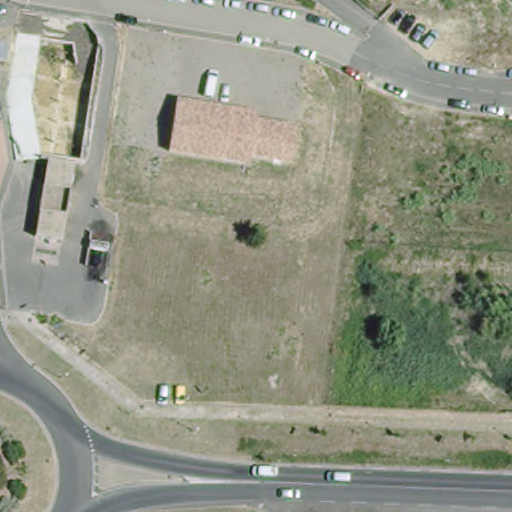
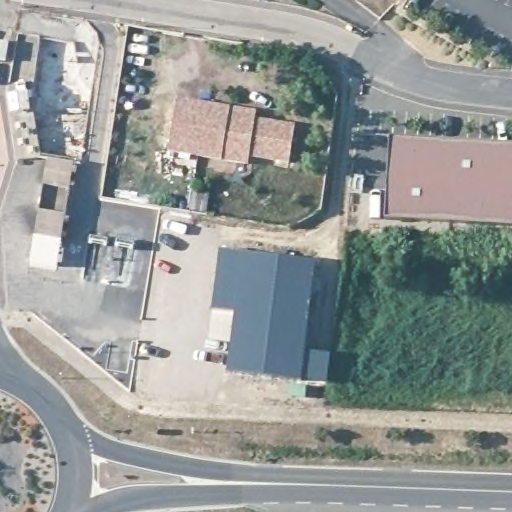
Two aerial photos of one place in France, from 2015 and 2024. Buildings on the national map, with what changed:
unchanged [(177,99),(230,107),(256,111),(255,119),(295,125),(290,164),(250,157),(249,165),(221,161),(169,152),(177,99)]
new [(512,144),(512,227),(386,220),(390,137),(512,144)]
unchanged [(77,163),(65,241),(35,235),(47,156),(77,163)]
new [(328,384),(303,378),(297,378),(297,380),(290,378),(226,370),(229,341),(232,313),(211,311),(220,247),(316,260),(307,350),(310,351),(331,352),(328,384)]

